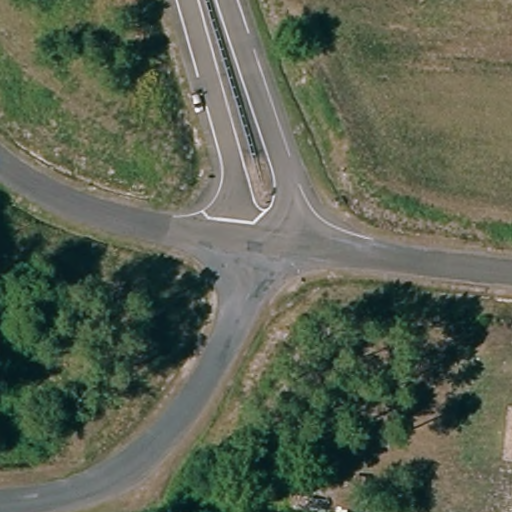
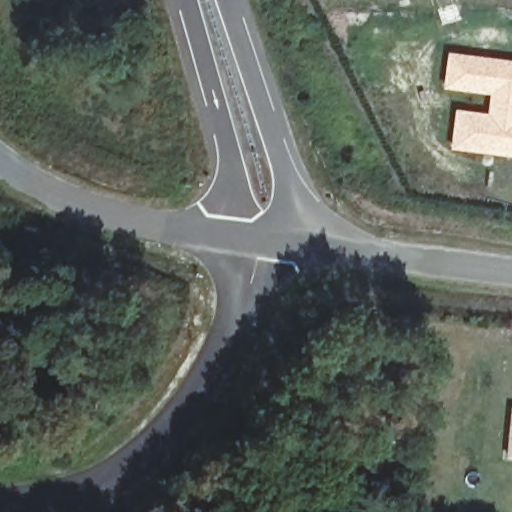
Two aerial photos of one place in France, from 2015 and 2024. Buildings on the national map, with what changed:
new [(512,154),(451,146),(455,114),(487,119),(491,91),(443,85),(448,56),(512,65),(512,154)]
unchanged [(512,418),(512,459),(508,458),(512,418)]

